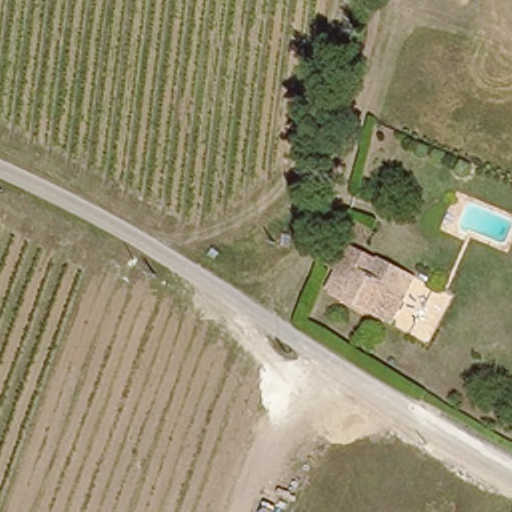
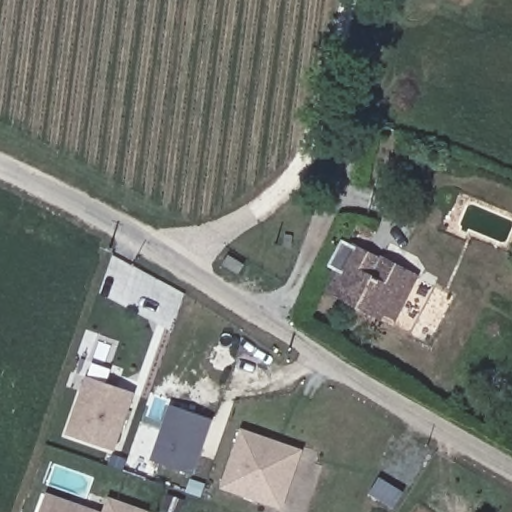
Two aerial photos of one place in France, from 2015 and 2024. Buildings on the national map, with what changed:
unchanged [(375,311),(327,289),(336,270),(327,265),(334,252),(344,256),(348,246),(392,265),(413,275),(406,288),(396,311),(392,320),(375,311)]
new [(115,448),(68,431),(88,375),(135,391),(115,448)]
new [(193,477),(150,462),(169,406),(214,420),(193,477)]
new [(301,450),(280,507),(222,486),(243,430),(301,450)]
new [(46,493),(74,502),(100,512),(39,512),(42,504),(46,493)]
new [(149,512),(105,512),(110,498),(149,512)]

